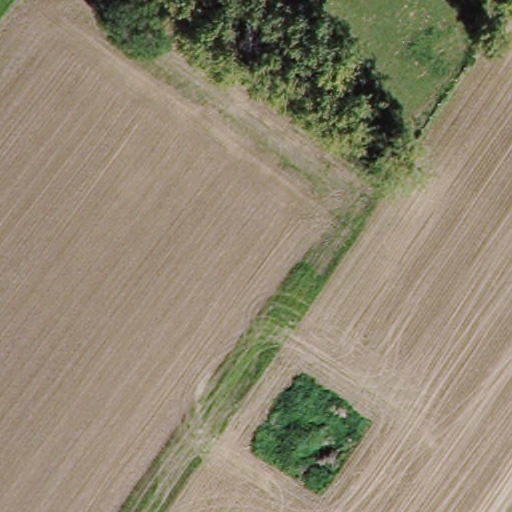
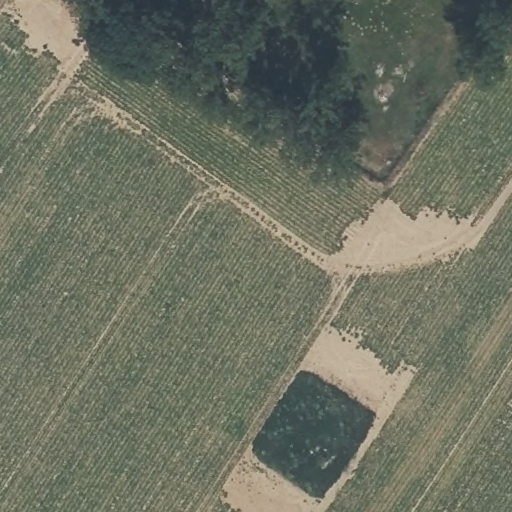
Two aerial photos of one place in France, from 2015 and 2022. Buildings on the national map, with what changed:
[]

